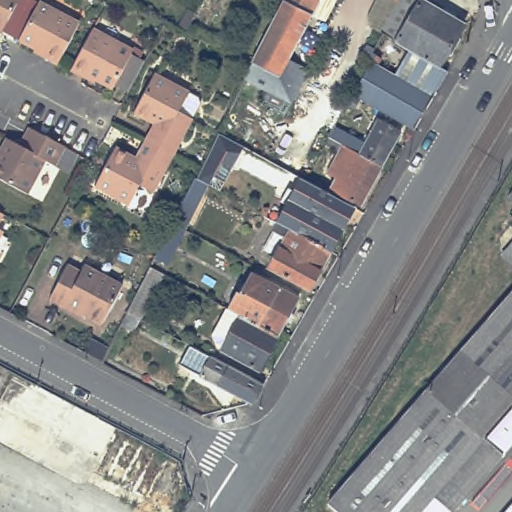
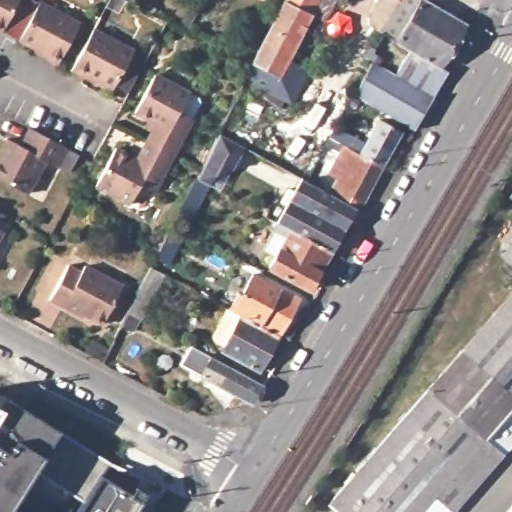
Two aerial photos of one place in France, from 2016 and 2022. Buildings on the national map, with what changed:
unchanged [(5,31),(0,28),(0,0),(21,0),(5,31)]
unchanged [(324,126),(244,80),(251,63),(283,2),(285,0),(322,0),(313,16),(292,61),(308,69),(326,37),(357,55),(324,126)]
unchanged [(401,47),(402,45),(387,36),(406,0),(411,0),(465,30),(442,71),(401,47)]
unchanged [(392,0),(402,0),(400,4),(392,0)]
unchanged [(45,57),(47,52),(22,39),(41,1),(80,22),(59,65),(45,57)]
unchanged [(90,74),(88,78),(74,70),(95,30),(134,50),(115,86),(90,74)]
unchanged [(360,101),(377,68),(398,81),(411,61),(447,83),(416,135),(360,101)]
unchanged [(157,129),(136,117),(157,77),(191,96),(199,100),(201,106),(193,121),(173,160),(147,146),(157,129)]
unchanged [(361,159),(381,125),(402,137),(384,171),(361,159)]
unchanged [(0,180),(0,149),(5,139),(19,146),(27,128),(62,146),(52,166),(42,161),(26,193),(0,180)]
unchanged [(156,254),(170,225),(192,180),(197,170),(205,155),(215,134),(240,147),(227,170),(216,164),(204,187),(206,189),(184,231),(166,267),(152,260),(156,254)]
unchanged [(154,197),(142,190),(132,209),(97,190),(117,153),(138,164),(147,146),(173,160),(154,197)]
unchanged [(340,181),(331,175),(347,150),(361,159),(384,171),(362,211),(340,198),(332,191),(340,181)]
unchanged [(279,229),(290,210),(282,205),(290,193),(297,196),(303,185),(307,187),(355,213),(331,256),(330,256),(279,229)]
unchanged [(512,196),(512,200),(510,198),(512,196)]
unchanged [(2,215),(0,218),(0,214),(2,215)]
unchanged [(330,256),(331,256),(310,294),(271,272),(276,262),(268,257),(277,240),(275,237),(279,229),(330,256)]
unchanged [(1,231),(0,232),(0,231),(1,231)]
unchanged [(512,241),(512,264),(501,253),(512,241)]
unchanged [(64,305),(61,309),(46,300),(65,265),(79,273),(82,266),(120,287),(101,325),(64,305)]
unchanged [(148,270),(161,276),(139,321),(139,320),(137,320),(131,333),(120,327),(119,327),(126,314),(148,270)]
unchanged [(247,321),(244,320),(236,315),(244,299),(249,301),(260,280),(305,305),(285,341),(247,321)]
unchanged [(501,452),(449,512),(341,512),(328,500),(512,292),(512,405),(485,436),(501,452)]
unchanged [(229,356),(231,350),(221,345),(220,340),(225,331),(233,314),(236,315),(244,320),(247,321),(285,341),(266,375),(229,356)]
unchanged [(197,379),(208,357),(260,384),(248,405),(197,379)]
new [(77,512),(87,496),(36,467),(7,512),(0,512),(0,406),(7,398),(57,430),(135,475),(141,475),(163,485),(146,512),(77,512)]
demolished [(113,431),(167,458),(150,498),(94,470),(113,431)]
unchanged [(512,512),(506,512),(512,506),(512,512)]

